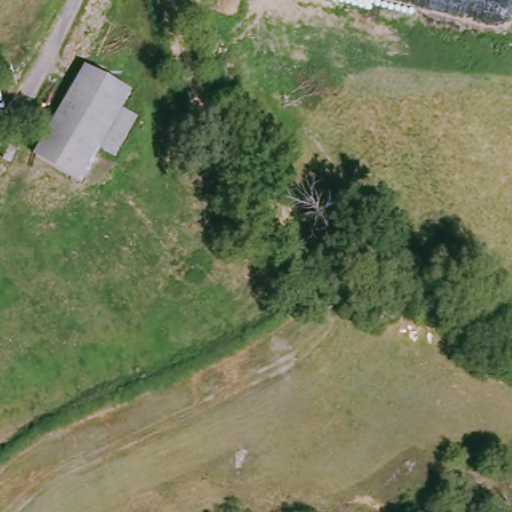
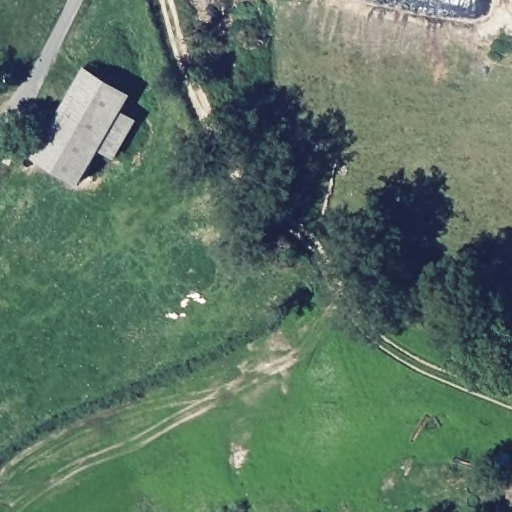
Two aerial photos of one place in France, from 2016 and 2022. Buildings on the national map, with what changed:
unchanged [(137,91),(117,125),(132,134),(110,172),(95,164),(87,180),(42,154),(92,66),(137,91)]

